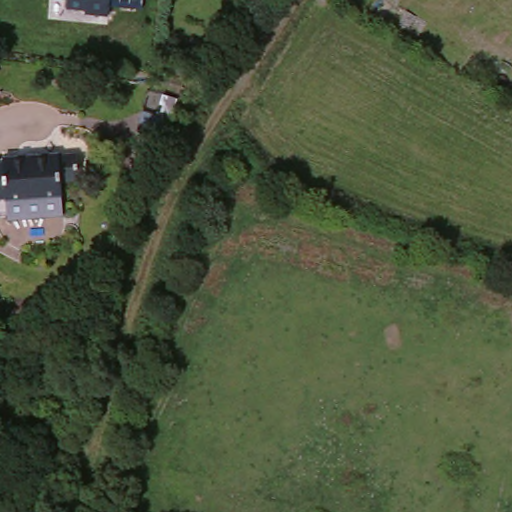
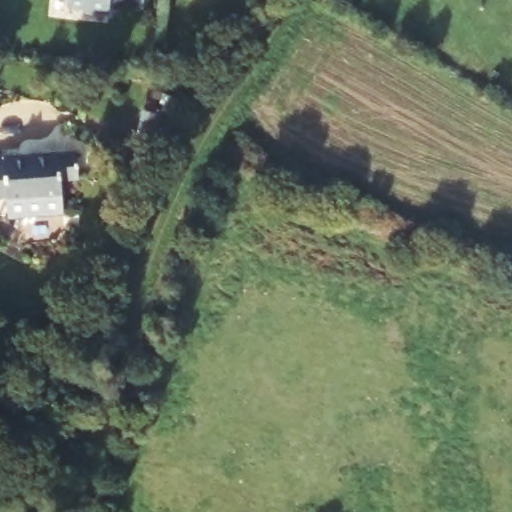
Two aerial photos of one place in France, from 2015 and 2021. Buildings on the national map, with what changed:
unchanged [(144,8),(109,6),(108,16),(84,14),(84,9),(66,7),(67,0),(144,0),(144,8)]
unchanged [(159,127),(154,144),(133,138),(136,122),(159,127)]
unchanged [(69,154),(71,197),(61,197),(14,201),(4,202),(3,198),(0,198),(0,158),(54,155),(69,154)]
unchanged [(14,201),(61,197),(71,197),(73,216),(59,217),(5,221),(4,202),(14,201)]

